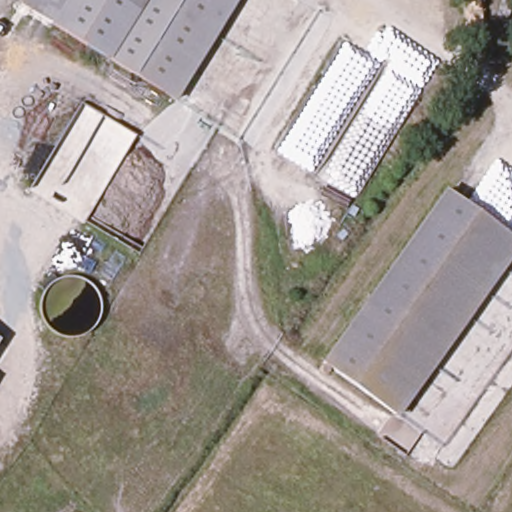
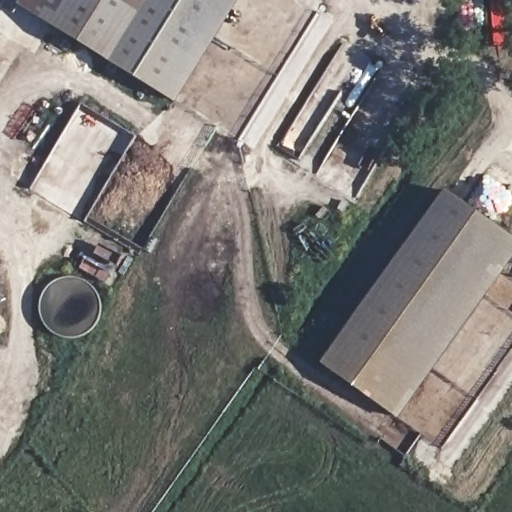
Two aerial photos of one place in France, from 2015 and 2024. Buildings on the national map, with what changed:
unchanged [(145,0),(104,58),(21,0),(145,0)]
unchanged [(239,0),(171,100),(104,58),(145,0),(239,0)]
unchanged [(320,368),(444,195),(512,243),(512,267),(396,424),(320,368)]

